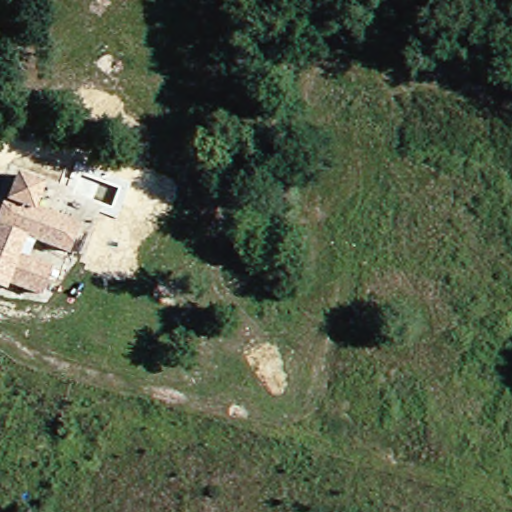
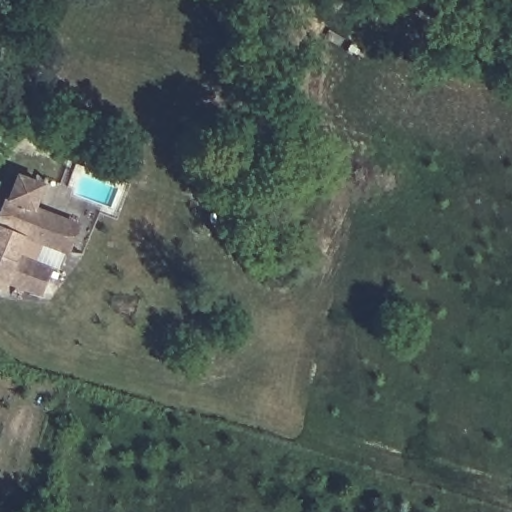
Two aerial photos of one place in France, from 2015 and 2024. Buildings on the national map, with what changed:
unchanged [(53,185),(45,207),(87,223),(83,233),(77,250),(36,234),(32,246),(28,255),(58,267),(46,297),(0,279),(0,217),(5,203),(17,171),(53,185)]

